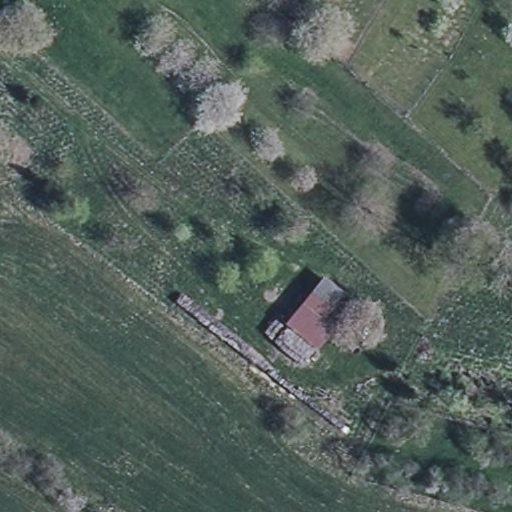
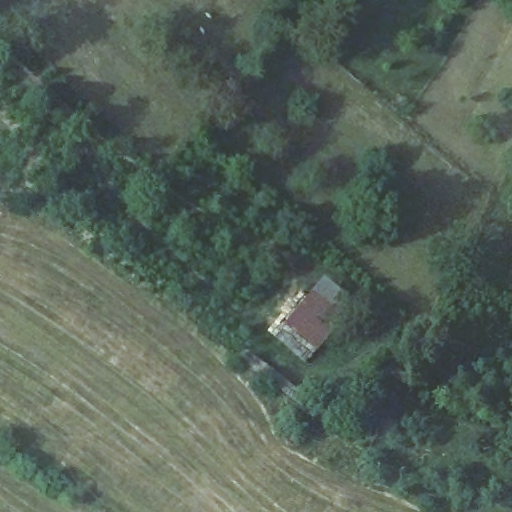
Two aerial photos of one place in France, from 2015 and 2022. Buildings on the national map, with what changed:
unchanged [(286,326),(326,277),(353,304),(317,350),(286,326)]

